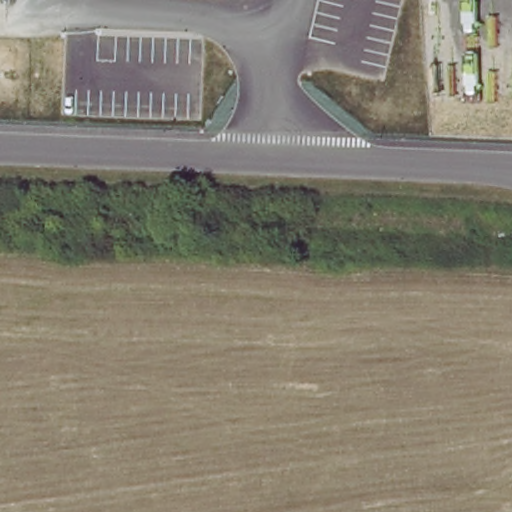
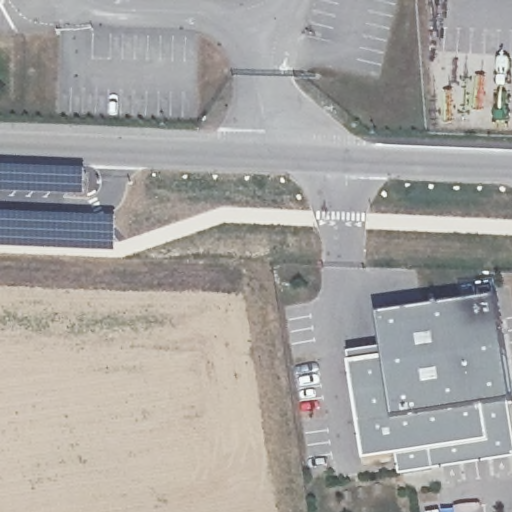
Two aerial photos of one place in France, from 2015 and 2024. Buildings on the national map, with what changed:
new [(380,359),(374,316),(494,298),(509,405),(505,405),(480,409),(485,443),(425,451),(427,470),(399,474),(396,456),(393,457),(360,461),(345,364),(380,359)]
new [(396,456),(399,474),(427,470),(425,451),(485,443),(480,409),(505,405),(512,452),(512,459),(396,476),(393,457),(396,456)]

